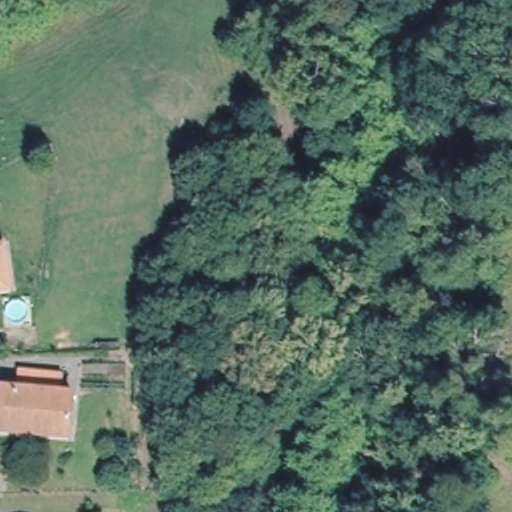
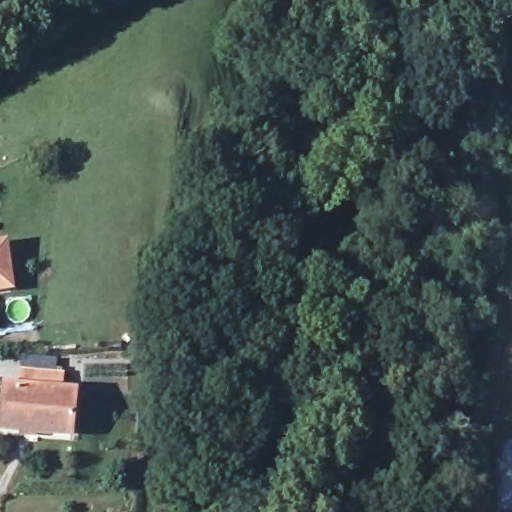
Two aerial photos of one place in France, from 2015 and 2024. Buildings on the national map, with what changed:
unchanged [(0,247),(5,289),(0,289),(0,247)]
unchanged [(9,394),(32,396),(34,379),(64,381),(62,399),(77,400),(74,440),(6,434),(9,394)]

